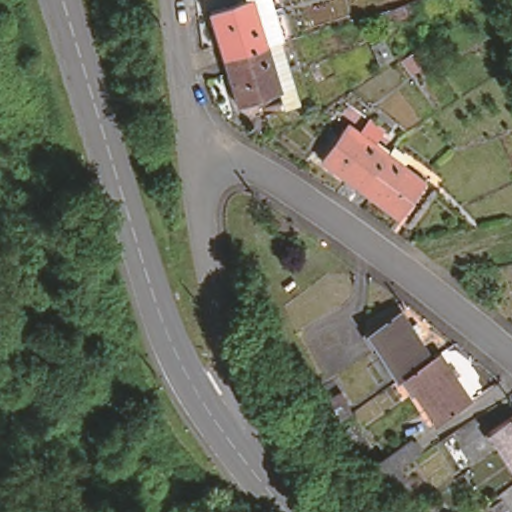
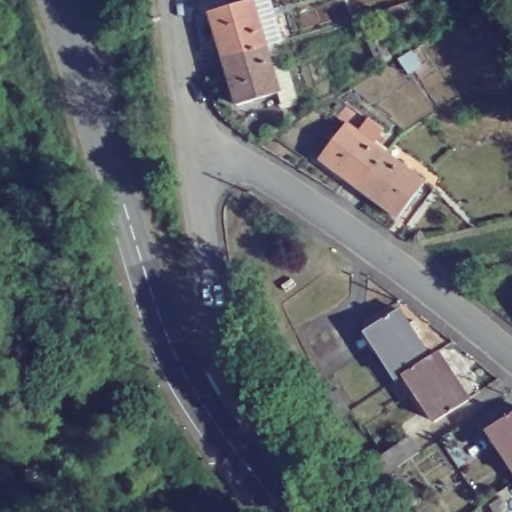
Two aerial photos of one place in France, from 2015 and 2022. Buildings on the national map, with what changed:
unchanged [(238,4),(237,0),(269,0),(282,41),(281,42),(260,48),(216,62),(202,15),(238,4)]
unchanged [(411,5),(414,16),(397,21),(380,27),(377,15),(392,10),(411,5)]
unchanged [(281,42),(298,100),(277,106),(274,95),(275,95),(260,48),(281,42)]
unchanged [(260,48),(275,95),(274,95),(230,107),(216,62),(260,48)]
unchanged [(422,70),(410,77),(401,62),(413,55),(422,70)]
unchanged [(312,162),(340,125),(379,154),(351,190),(312,162)]
unchanged [(379,154),(417,183),(390,219),(351,190),(379,154)]
unchanged [(277,273),(278,272),(279,271),(280,271),(281,269),(282,269),(282,268),(284,268),(285,268),(286,268),(287,268),(289,269),(289,270),(290,270),(291,271),(301,287),(288,295),(277,280),(277,277),(277,276),(277,275),(277,274),(277,273)]
unchanged [(407,376),(407,377),(400,382),(367,331),(400,311),(432,360),(407,376)]
unchanged [(470,402),(437,424),(407,377),(407,376),(432,360),(439,355),(470,402)]
unchanged [(343,399),(345,400),(353,413),(341,421),(334,405),(343,399)]
unchanged [(485,427),(512,408),(512,468),(485,427)]
unchanged [(389,496),(392,492),(386,483),(375,471),(415,443),(425,457),(401,473),(410,487),(423,506),(414,512),(385,512),(379,505),(389,496)]
unchanged [(503,500),(511,512),(496,512),(492,507),(503,500)]

